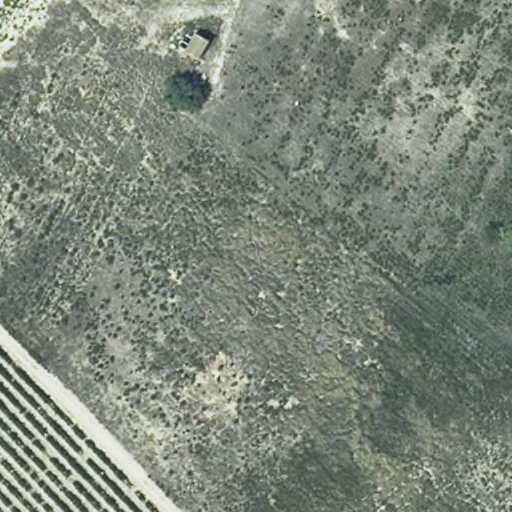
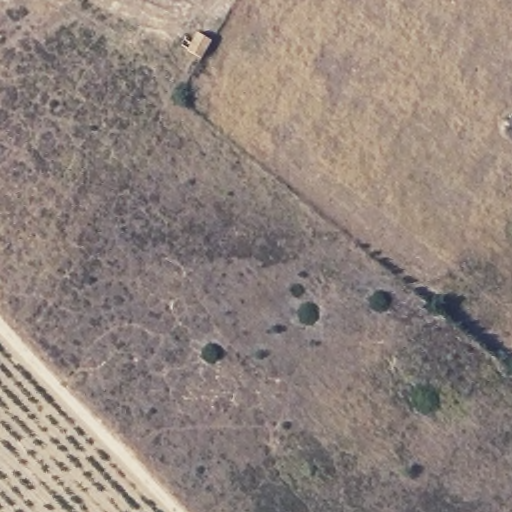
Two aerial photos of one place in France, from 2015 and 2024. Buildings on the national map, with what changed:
unchanged [(211,38),(202,59),(185,51),(195,31),(211,38)]

